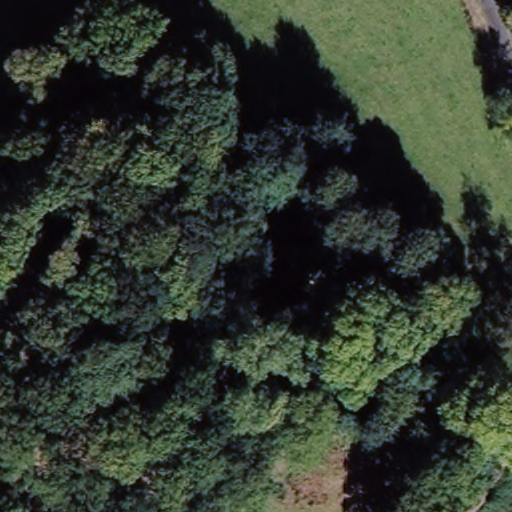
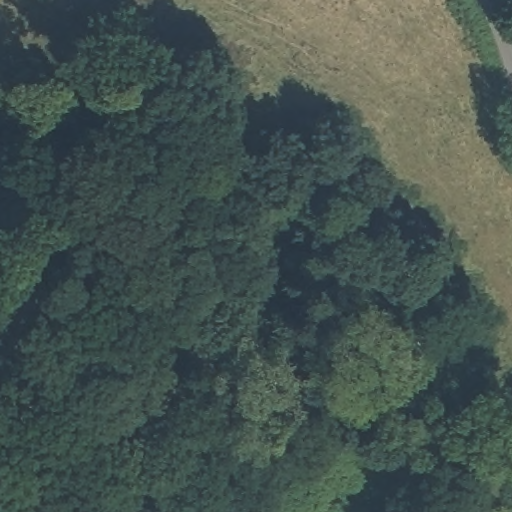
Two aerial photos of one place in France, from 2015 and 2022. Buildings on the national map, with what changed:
unchanged [(308,254),(307,272),(287,272),(287,255),(308,254)]

